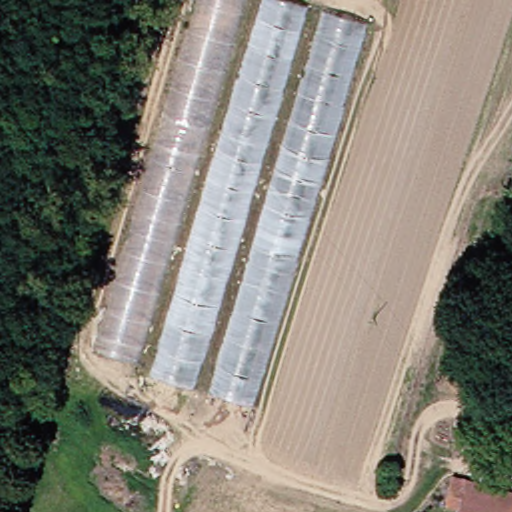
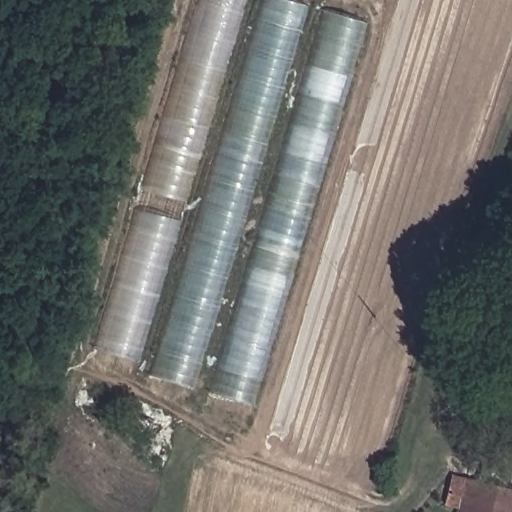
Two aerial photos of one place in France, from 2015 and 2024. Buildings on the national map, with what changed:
unchanged [(204,0),(272,0),(373,29),(251,411),(177,383),(96,354),(204,0)]
unchanged [(508,505),(512,506),(512,512),(453,512),(454,507),(439,504),(446,477),(511,493),(508,505)]

